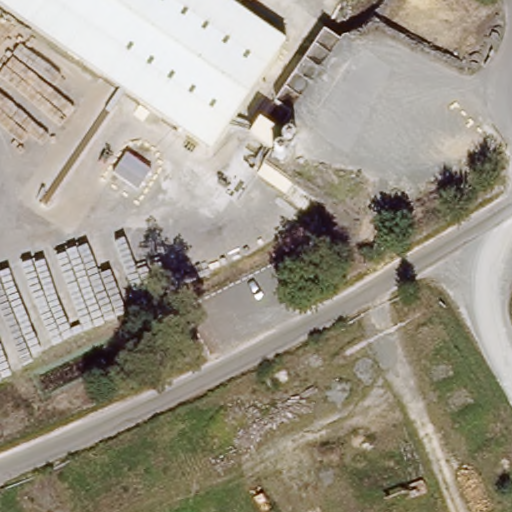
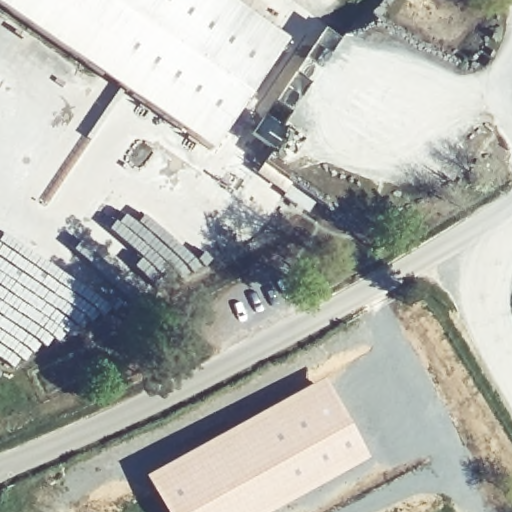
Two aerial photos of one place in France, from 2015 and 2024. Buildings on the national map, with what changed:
unchanged [(210,157),(0,5),(0,0),(218,0),(238,14),(287,49),(210,157)]
unchanged [(218,0),(249,0),(238,14),(218,0)]
new [(324,378),(369,459),(273,512),(162,512),(143,477),(324,378)]

